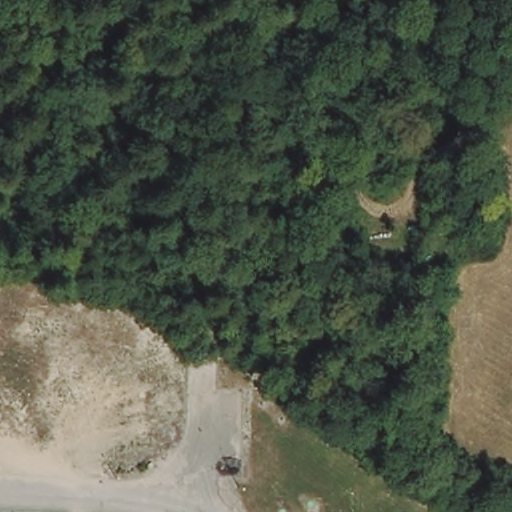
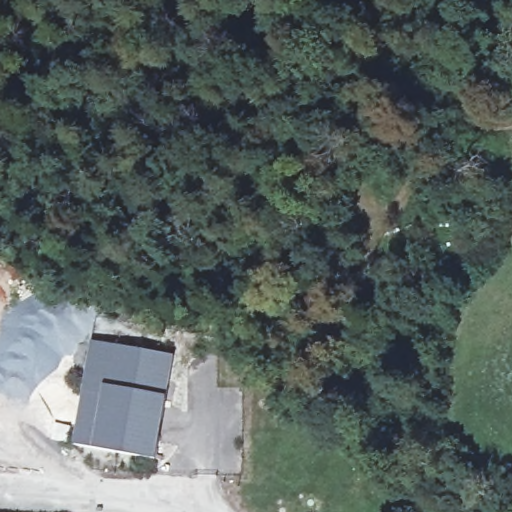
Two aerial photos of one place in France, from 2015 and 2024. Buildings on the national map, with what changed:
new [(89,342),(171,356),(165,397),(155,460),(91,449),(72,445),(89,342)]

